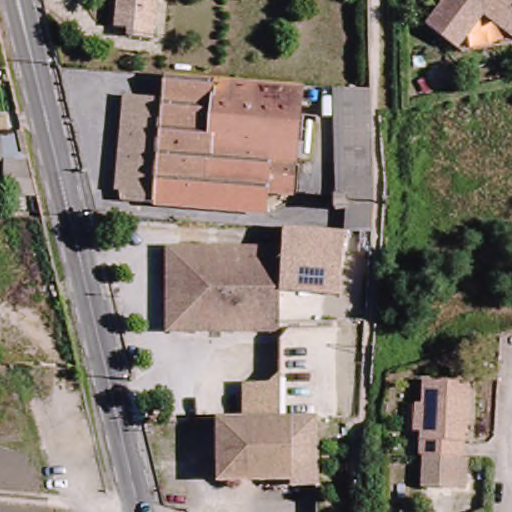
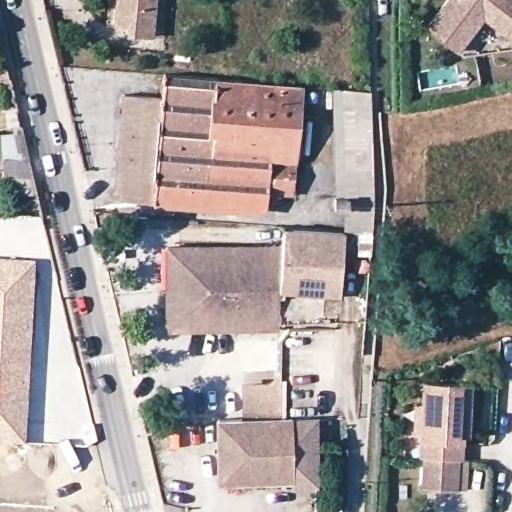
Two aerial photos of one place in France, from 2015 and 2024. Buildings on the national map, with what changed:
unchanged [(154,3),(150,54),(125,51),(125,41),(112,40),(115,0),(154,3)]
unchanged [(115,0),(154,0),(154,3),(115,0)]
unchanged [(455,42),(427,18),(443,0),(512,0),(512,30),(484,9),(455,42)]
unchanged [(305,89),(295,200),(270,198),(267,216),(129,204),(130,195),(122,194),(130,102),(168,105),(170,78),(305,89)]
unchanged [(334,209),(333,194),(343,195),(342,83),(369,85),(370,196),(370,209),(368,232),(345,230),(345,209),(334,209)]
unchanged [(10,189),(10,178),(1,177),(2,151),(0,151),(0,131),(15,132),(15,151),(20,152),(31,152),(40,191),(10,189)]
unchanged [(281,336),(276,336),(181,328),(167,327),(171,283),(175,243),(187,244),(280,251),(280,224),(341,229),(340,267),(338,291),(338,294),(321,293),(285,292),(283,319),(281,336)]
new [(33,260),(24,442),(0,441),(0,257),(33,260)]
unchanged [(278,375),(280,346),(291,337),(335,340),(337,418),(321,418),(287,418),(241,417),(244,384),(267,386),(278,375)]
unchanged [(413,431),(414,403),(420,403),(421,381),(470,383),(468,434),(463,435),(460,458),(456,458),(420,455),(417,455),(419,432),(413,431)]
unchanged [(287,479),(212,474),(214,418),(287,418),(287,479)]
unchanged [(321,418),(322,481),(287,479),(287,418),(321,418)]
unchanged [(456,458),(455,489),(418,488),(420,455),(456,458)]

